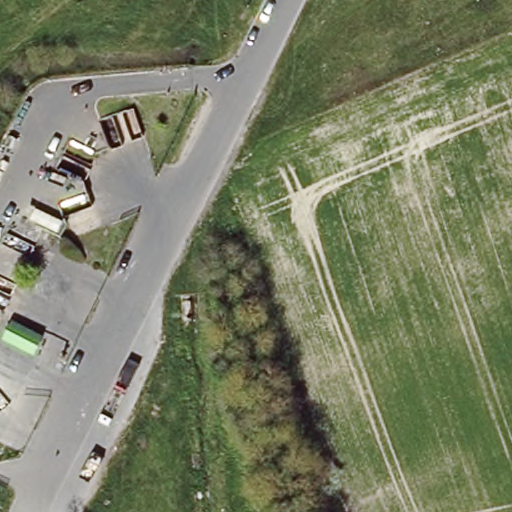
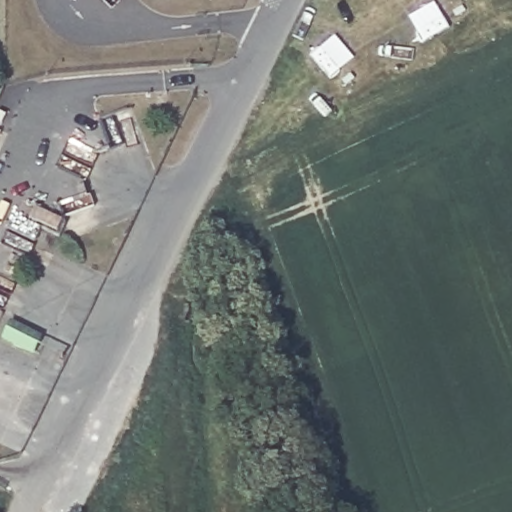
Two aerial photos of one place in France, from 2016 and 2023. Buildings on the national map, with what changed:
unchanged [(32,351),(15,346),(2,335),(8,322),(26,328),(39,339),(32,351)]

